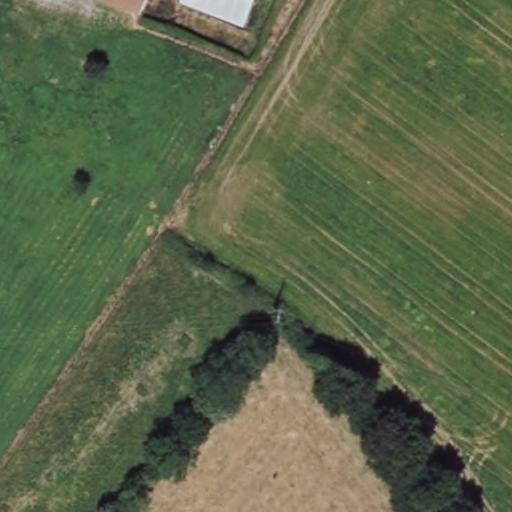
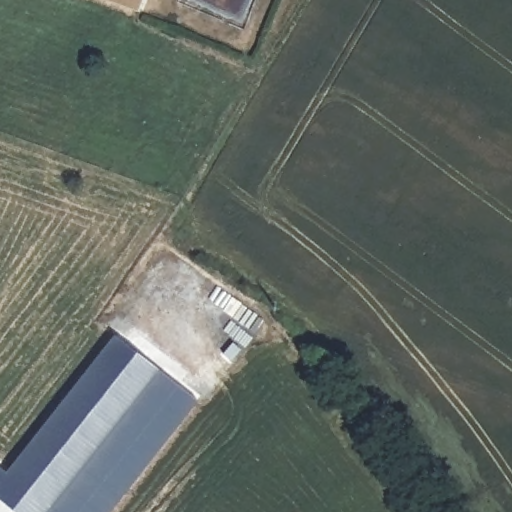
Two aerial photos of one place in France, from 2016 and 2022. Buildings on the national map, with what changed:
unchanged [(140,9),(111,0),(144,0),(140,9)]
new [(16,478),(133,347),(210,416),(125,512),(16,512),(0,498),(0,473),(5,468),(16,478)]

